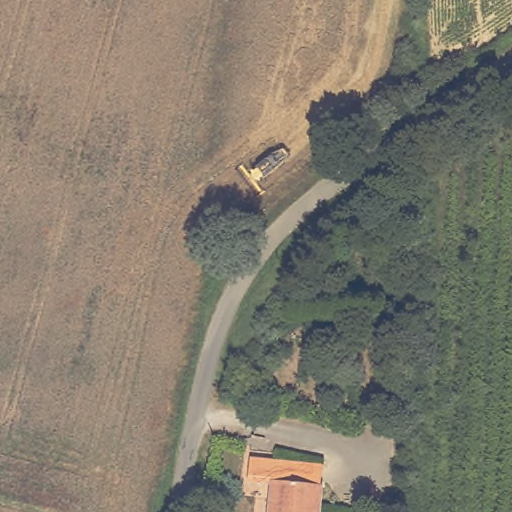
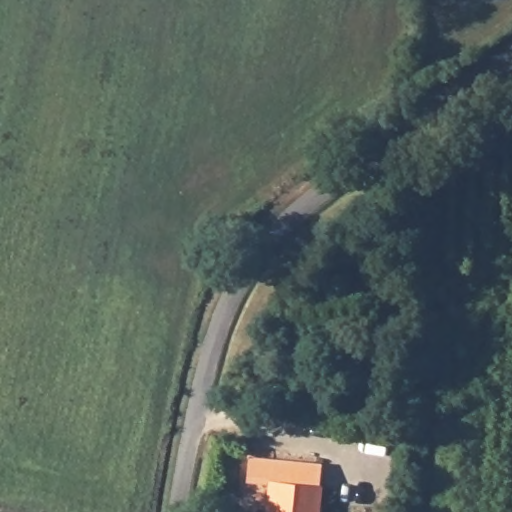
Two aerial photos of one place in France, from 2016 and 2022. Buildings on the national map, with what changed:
unchanged [(327,462),(323,512),(272,512),(274,483),(251,482),(253,457),(327,462)]

